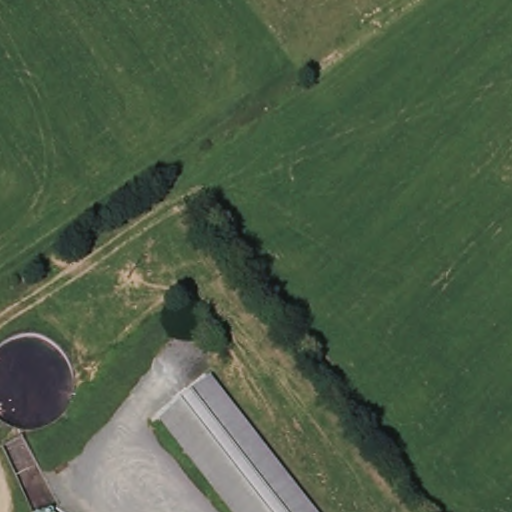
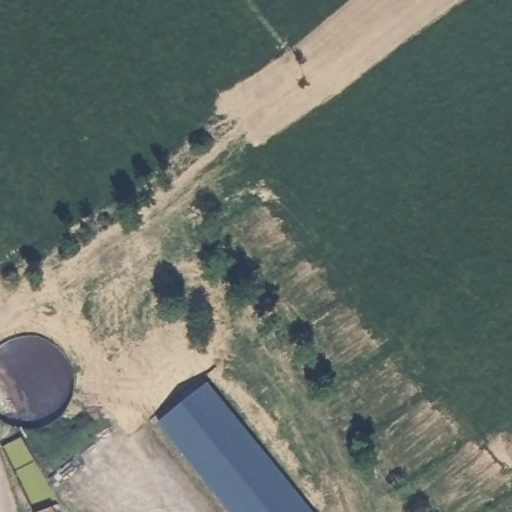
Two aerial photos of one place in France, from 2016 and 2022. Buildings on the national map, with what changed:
unchanged [(314,512),(230,512),(159,424),(211,384),(314,512)]

